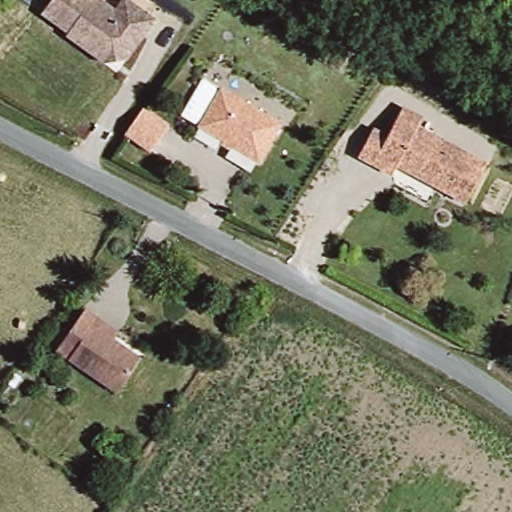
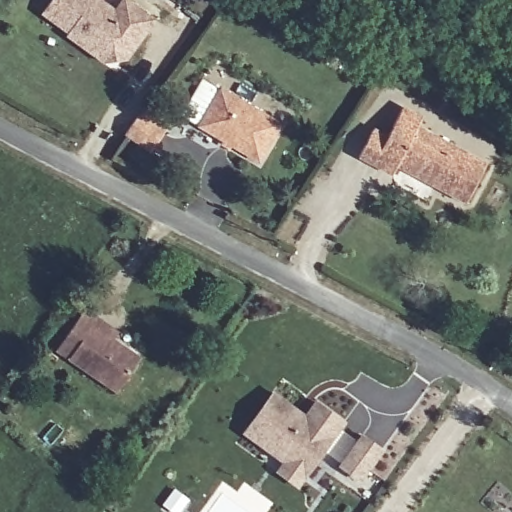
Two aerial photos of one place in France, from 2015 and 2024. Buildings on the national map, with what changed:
unchanged [(36,13),(46,0),(98,0),(110,8),(117,0),(126,0),(151,18),(141,32),(121,57),(98,62),(61,35),(63,33),(36,13)]
unchanged [(280,119),(260,158),(197,129),(216,89),(280,119)]
unchanged [(371,124),(385,131),(400,102),(421,114),(416,124),(482,158),(463,195),(394,159),(390,167),(357,149),(371,124)]
unchanged [(141,112),(166,132),(161,139),(148,157),(121,138),(135,119),(141,112)]
unchanged [(118,390),(54,344),(84,305),(96,314),(116,327),(113,334),(143,356),(118,390)]
new [(307,412),(316,399),(347,420),(299,488),(277,472),(283,461),(243,433),(274,389),(307,412)]
new [(384,449),(360,483),(338,466),(363,433),(384,449)]

